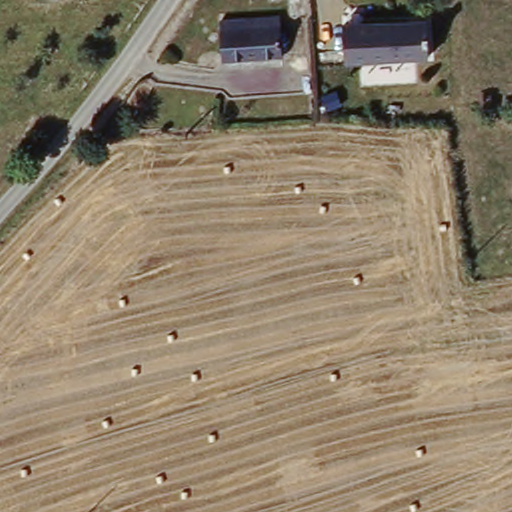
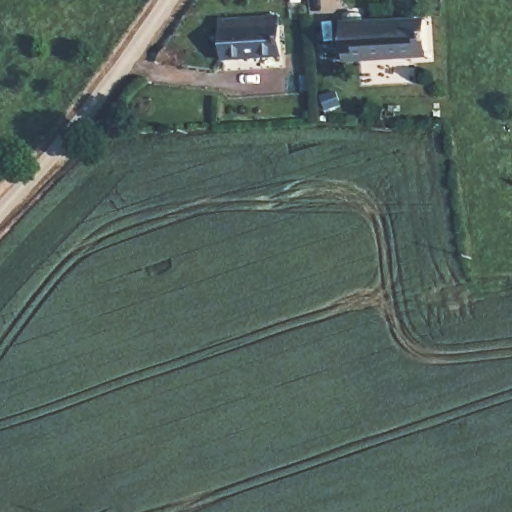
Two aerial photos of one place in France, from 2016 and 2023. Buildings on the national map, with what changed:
unchanged [(287,61),(229,67),(227,25),(284,21),(287,61)]
unchanged [(350,64),(348,26),(382,25),(384,61),(350,64)]
unchanged [(404,70),(396,70),(393,67),(392,61),(384,61),(382,25),(424,25),(426,59),(407,60),(407,66),(404,70)]

